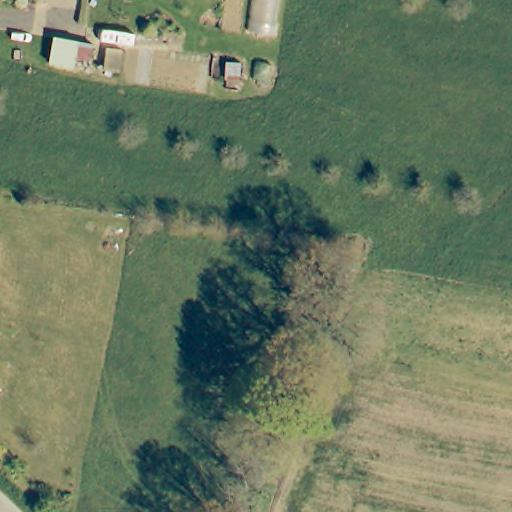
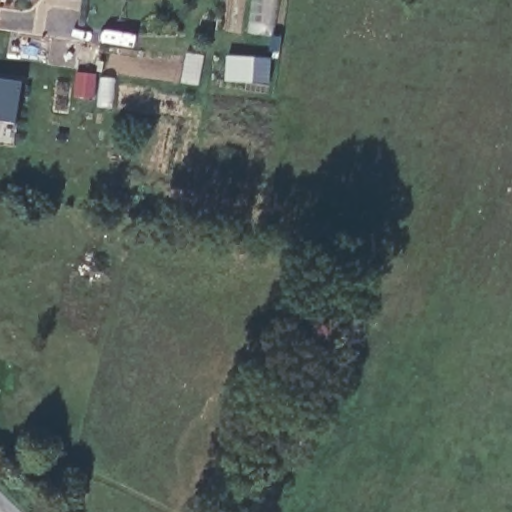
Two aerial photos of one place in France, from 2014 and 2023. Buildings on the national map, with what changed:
unchanged [(30,35),(53,44),(54,36),(94,46),(91,61),(76,58),(75,70),(24,59),(30,35)]
new [(0,142),(0,79),(24,83),(16,145),(0,142)]

